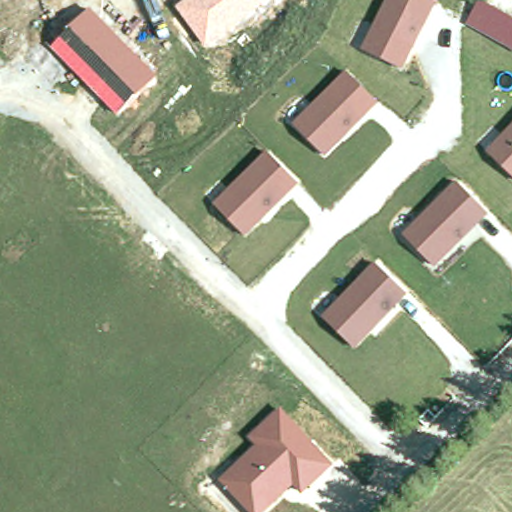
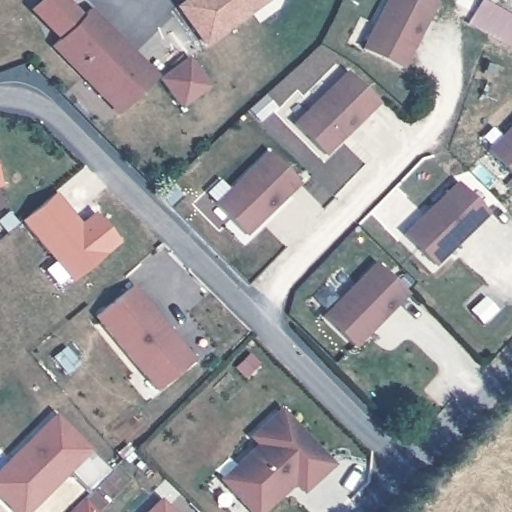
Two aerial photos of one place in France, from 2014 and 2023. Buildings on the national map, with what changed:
new [(28,10),(39,0),(69,0),(83,15),(56,40),(28,10)]
unchanged [(205,45),(176,8),(187,0),(268,0),(267,2),(205,45)]
unchanged [(404,69),(360,49),(384,0),(431,0),(435,1),(404,69)]
unchanged [(480,3),(512,19),(512,52),(466,28),(480,3)]
unchanged [(158,75),(117,115),(50,47),(91,8),(158,75)]
new [(211,88),(181,108),(160,78),(188,56),(211,88)]
unchanged [(375,103),(323,155),(291,124),(343,74),(375,103)]
unchanged [(512,180),(483,149),(512,121),(512,180)]
unchanged [(297,186),(244,238),(215,207),(266,154),(297,186)]
unchanged [(487,215),(435,268),(401,235),(455,183),(487,215)]
new [(1,187),(0,187),(0,184),(1,187)]
new [(73,279),(23,220),(55,194),(73,215),(67,222),(75,230),(95,213),(119,242),(73,279)]
new [(6,232),(0,224),(0,218),(8,211),(17,222),(6,232)]
unchanged [(406,294),(354,348),(320,316),(370,264),(406,294)]
new [(195,359),(156,393),(93,317),(133,284),(195,359)]
unchanged [(331,468),(300,493),(295,487),(267,512),(249,512),(220,483),(255,446),(249,439),(280,409),(331,468)]
new [(11,511),(0,499),(0,464),(51,413),(106,469),(84,491),(63,469),(48,484),(20,512),(13,512),(11,511)]
new [(157,501),(169,512),(145,512),(157,501)]

